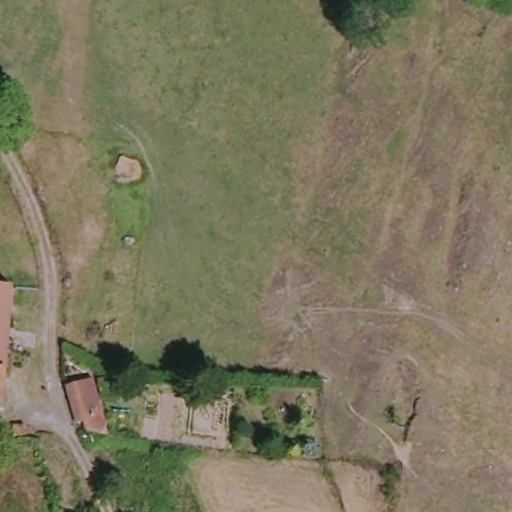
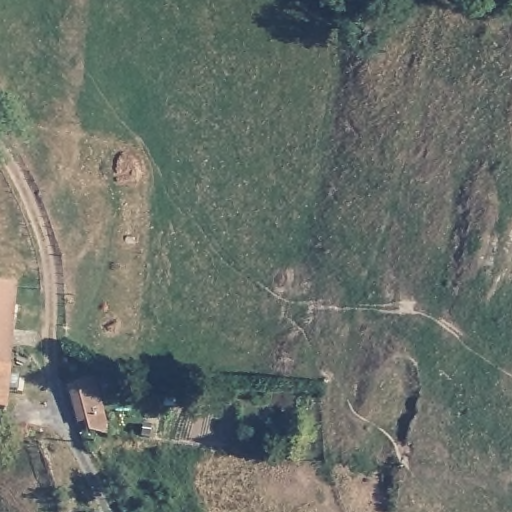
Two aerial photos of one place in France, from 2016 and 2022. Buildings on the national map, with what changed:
unchanged [(5,416),(0,415),(0,289),(10,289),(5,416)]
unchanged [(90,402),(101,431),(89,434),(85,428),(79,431),(68,391),(68,386),(92,379),(100,397),(90,402)]

